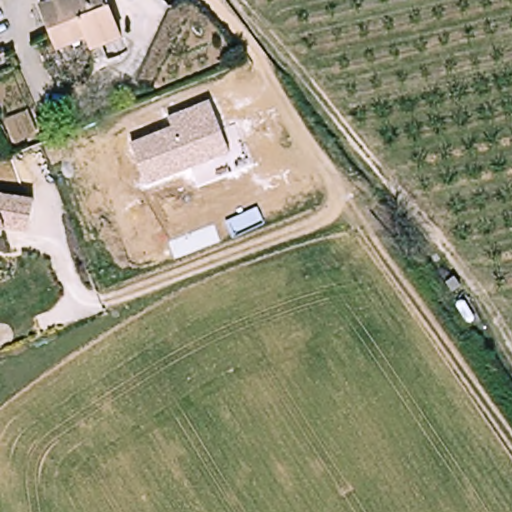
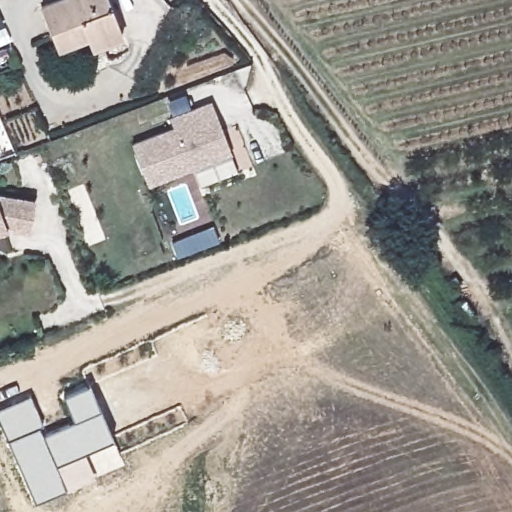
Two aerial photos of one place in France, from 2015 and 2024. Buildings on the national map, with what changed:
unchanged [(99,45),(96,36),(57,50),(43,6),(60,0),(107,0),(121,37),(99,45)]
unchanged [(168,118),(210,101),(230,153),(150,184),(135,144),(172,128),(168,118)]
unchanged [(45,196),(40,228),(16,224),(0,230),(0,192),(5,190),(45,196)]
new [(95,476),(34,501),(0,421),(0,405),(28,393),(42,423),(38,425),(42,434),(74,419),(62,394),(89,383),(113,439),(85,453),(95,476)]

